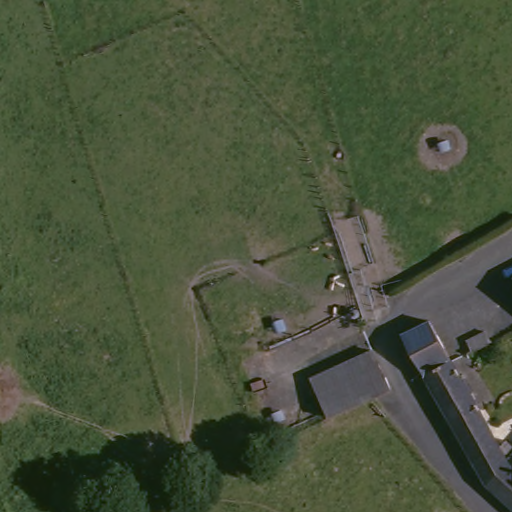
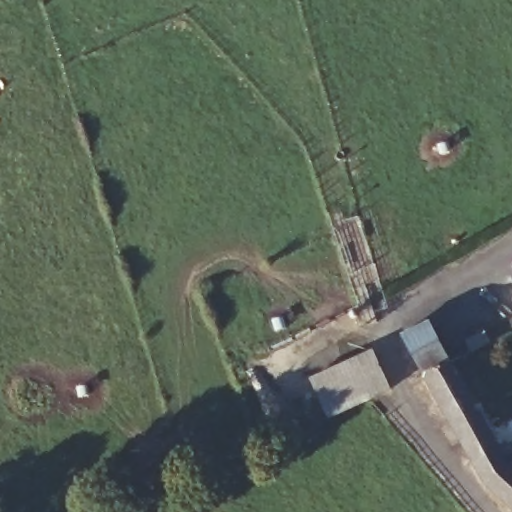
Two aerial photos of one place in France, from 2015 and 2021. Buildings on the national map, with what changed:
unchanged [(433,376),(412,338),(421,334),(440,325),(460,363),(433,376)]
unchanged [(475,356),(470,345),(492,335),(497,346),(475,356)]
unchanged [(395,387),(393,388),(383,394),(354,409),(336,420),(317,380),(375,351),(395,387)]
unchanged [(433,376),(460,363),(507,445),(512,442),(512,501),(489,478),(433,376)]

